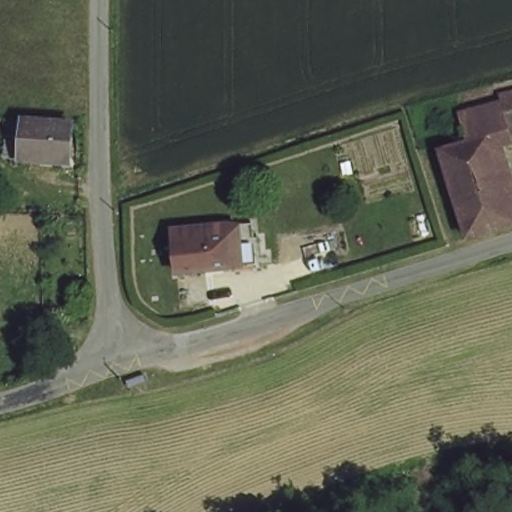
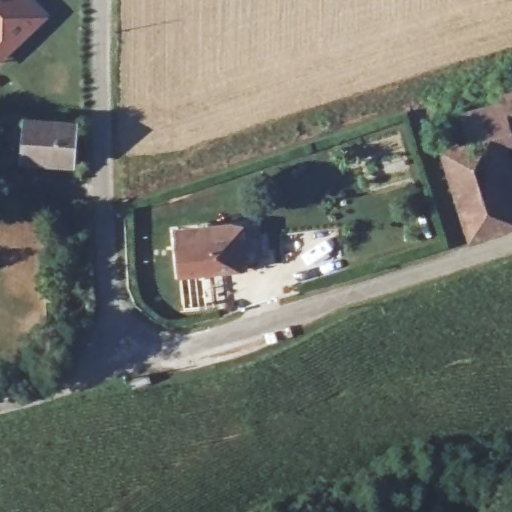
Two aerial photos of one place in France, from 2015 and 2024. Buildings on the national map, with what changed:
new [(49,17),(0,63),(0,0),(33,0),(49,17)]
unchanged [(467,235),(440,147),(461,142),(457,121),(465,119),(464,111),(507,101),(505,96),(512,94),(512,122),(512,144),(494,148),(512,213),(512,221),(467,235)]
unchanged [(75,161),(6,159),(9,119),(77,121),(75,161)]
unchanged [(248,267),(170,276),(165,233),(244,224),(245,240),(252,239),(254,260),(247,261),(248,267)]

